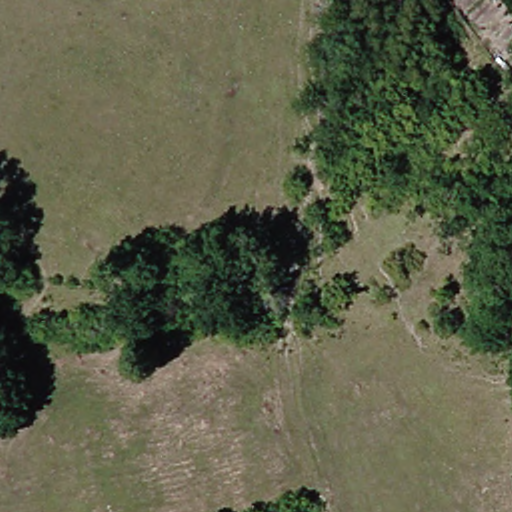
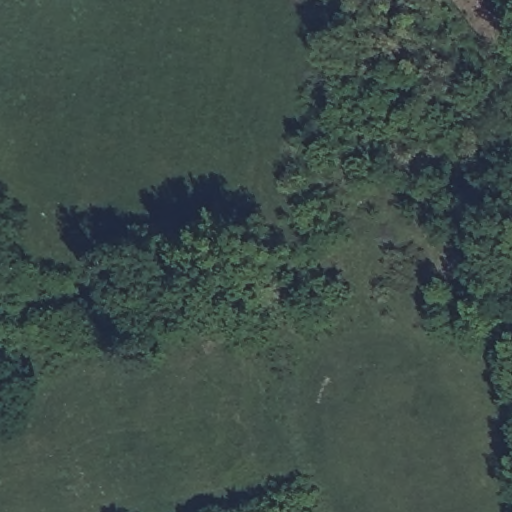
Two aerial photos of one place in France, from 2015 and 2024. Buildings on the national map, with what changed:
unchanged [(405,3),(400,0),(407,0),(405,3)]

